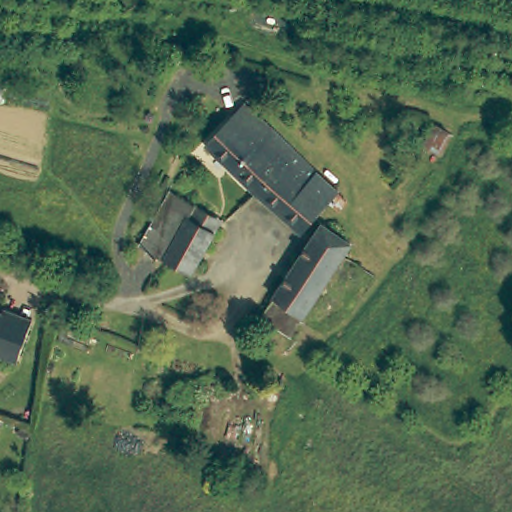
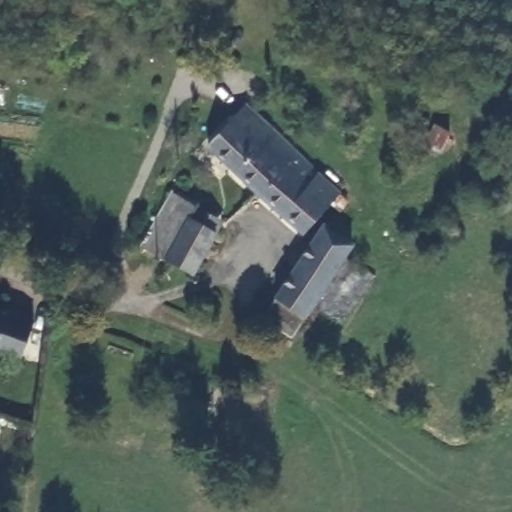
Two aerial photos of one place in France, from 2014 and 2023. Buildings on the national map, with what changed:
unchanged [(199,133),(239,91),(255,106),(215,149),(199,133)]
unchanged [(303,153),(260,192),(215,149),(255,106),(303,153)]
unchanged [(260,192),(303,153),(347,194),(322,223),(309,237),(260,192)]
unchanged [(178,194),(198,204),(169,258),(143,243),(178,194)]
unchanged [(213,212),(207,224),(215,229),(193,272),(169,258),(198,204),(213,212)]
unchanged [(259,309),(271,294),(328,222),(353,243),(344,257),(292,321),(284,330),(259,309)]
unchanged [(16,358),(0,351),(0,308),(31,321),(16,358)]
unchanged [(0,409),(19,416),(9,441),(0,437),(0,409)]

